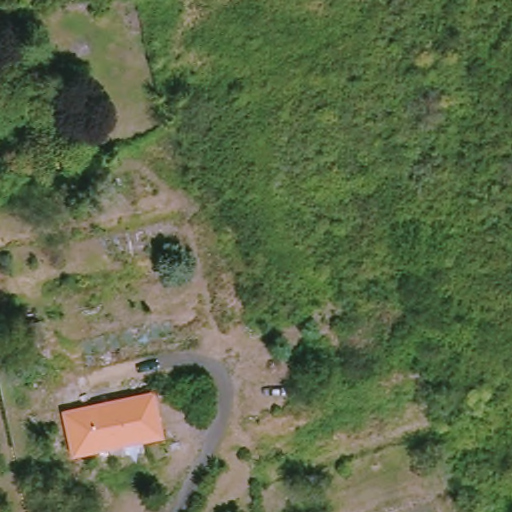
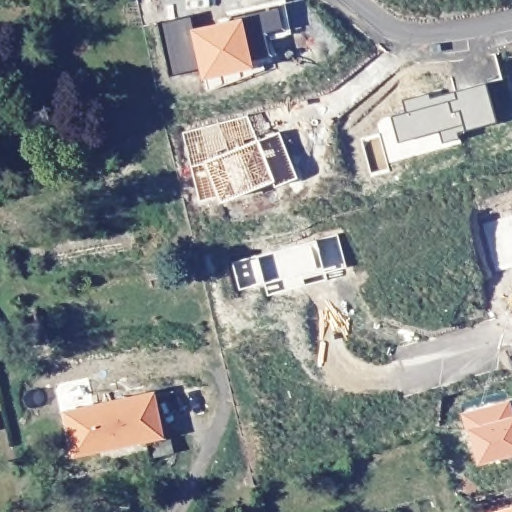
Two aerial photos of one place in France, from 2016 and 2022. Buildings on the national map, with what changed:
new [(203,68),(194,29),(220,25),(246,19),(245,13),(281,5),(286,30),(267,35),(273,62),(205,77),(203,68)]
new [(194,29),(203,68),(170,76),(159,22),(193,19),(194,29)]
new [(496,123),(459,134),(460,139),(444,143),(440,133),(399,144),(393,117),(406,113),(403,101),(430,94),(432,98),(486,84),(496,123)]
new [(274,179),(222,200),(219,194),(201,201),(190,168),(183,133),(248,117),(258,142),(280,133),(298,177),(277,187),(274,179)]
new [(483,226),(512,218),(512,268),(496,273),(483,226)]
new [(268,296),(265,283),(239,291),(233,264),(317,240),(318,242),(339,237),(347,267),(326,273),(328,280),(268,296)]
unchanged [(38,326),(42,343),(27,347),(23,330),(38,326)]
unchanged [(96,447),(89,407),(148,394),(157,433),(96,447)]
new [(464,415),(509,403),(512,413),(512,453),(478,463),(464,415)]
new [(506,512),(512,510),(512,512),(506,512)]

